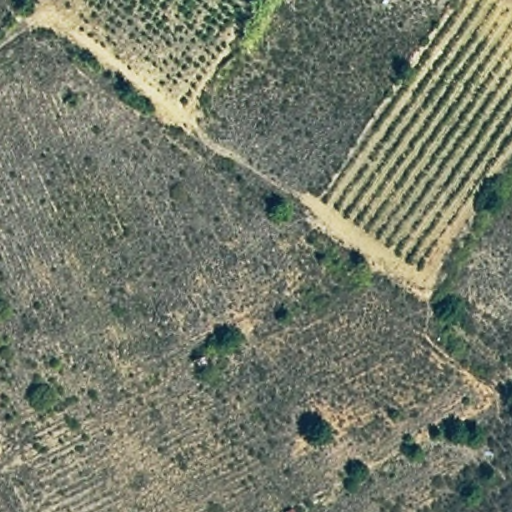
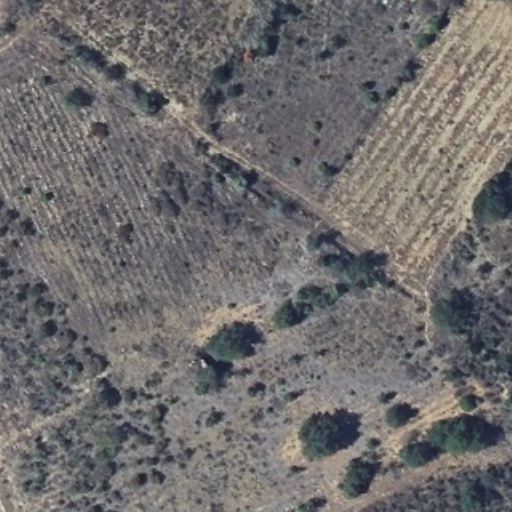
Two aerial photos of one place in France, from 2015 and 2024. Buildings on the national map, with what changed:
unchanged [(201,356),(208,371),(192,379),(186,366),(201,356)]

